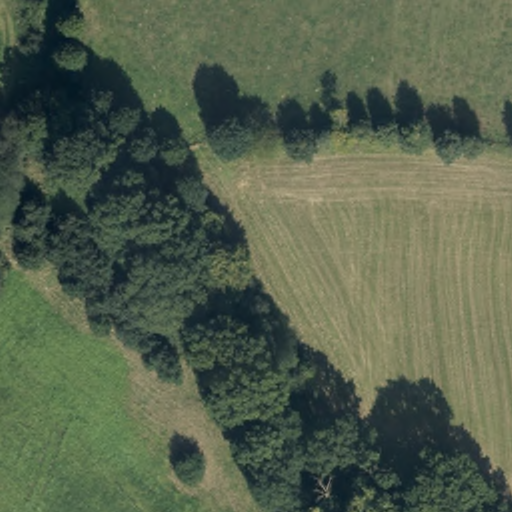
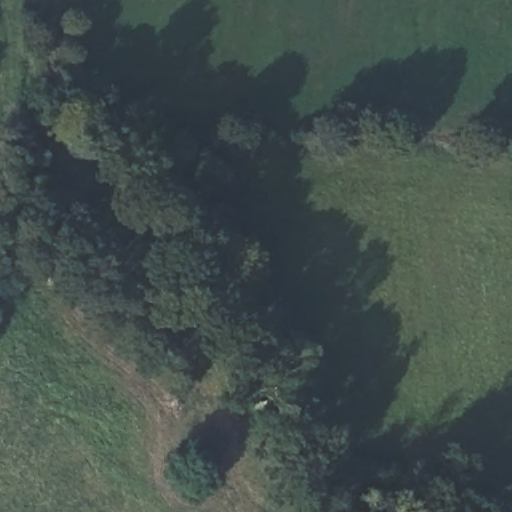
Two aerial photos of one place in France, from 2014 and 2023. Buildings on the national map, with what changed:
[]

